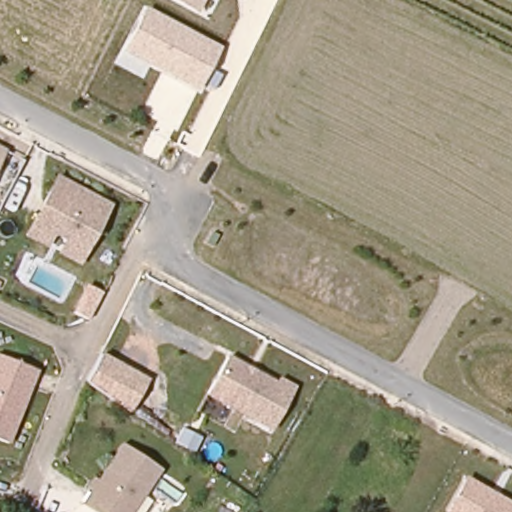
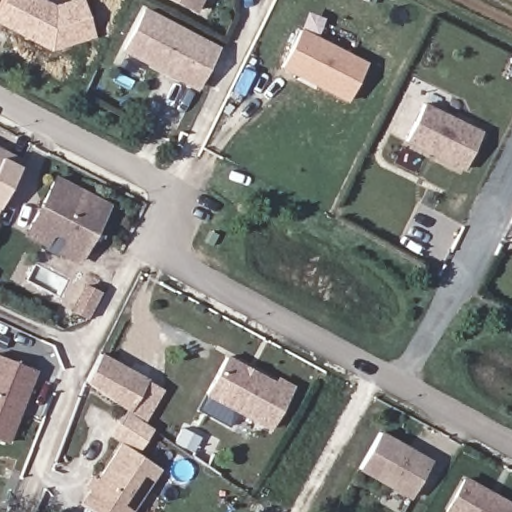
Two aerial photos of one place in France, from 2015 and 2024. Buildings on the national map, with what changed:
new [(0,24),(0,5),(3,0),(46,0),(54,4),(68,0),(84,0),(96,36),(51,51),(0,24)]
unchanged [(172,0),(202,0),(196,12),(172,0)]
unchanged [(197,92),(121,51),(144,7),(220,46),(197,92)]
new [(280,66),(300,26),(367,60),(347,100),(280,66)]
new [(464,171),(405,142),(424,101),(484,130),(464,171)]
unchanged [(0,149),(5,152),(0,162),(0,149)]
unchanged [(79,266),(20,236),(53,174),(111,205),(79,266)]
new [(89,319),(71,311),(85,282),(102,291),(89,319)]
unchanged [(129,411),(86,381),(101,355),(146,381),(129,411)]
unchanged [(275,381),(277,376),(296,385),(271,433),(204,396),(227,355),(275,381)]
unchanged [(0,357),(36,370),(9,444),(0,441),(0,357)]
new [(409,499),(358,470),(381,430),(432,460),(409,499)]
unchanged [(161,470),(132,512),(92,512),(80,503),(121,443),(161,470)]
unchanged [(444,512),(464,476),(512,503),(512,512),(444,512)]

